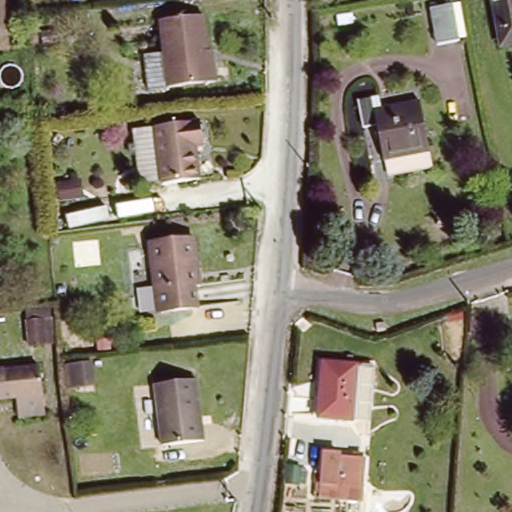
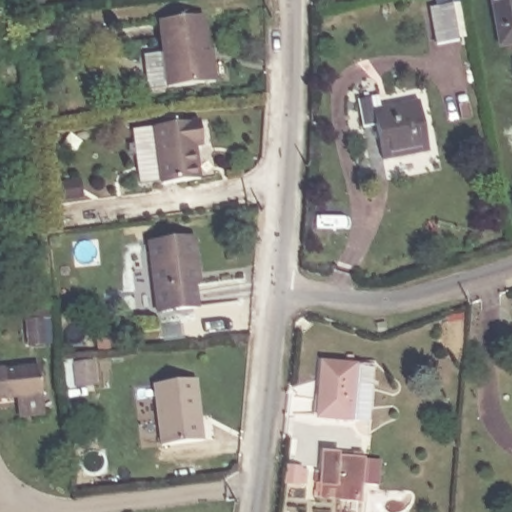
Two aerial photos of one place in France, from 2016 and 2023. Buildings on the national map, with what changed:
unchanged [(502,43),(495,0),(512,0),(512,41),(502,43)]
unchanged [(450,3),(457,38),(436,42),(429,7),(450,3)]
unchanged [(146,58),(166,55),(162,21),(207,16),(212,62),(216,61),(218,83),(170,89),(150,91),(146,58)]
unchanged [(382,126),(369,128),(364,100),(378,97),(380,109),(425,101),(432,142),(433,152),(387,160),(385,150),(382,126)]
unchanged [(214,143),(206,144),(210,176),(173,181),(173,178),(152,181),(147,152),(140,153),(138,142),(146,141),(145,128),(165,125),(210,118),(214,143)]
unchanged [(73,182),(76,199),(59,202),(56,185),(73,182)]
unchanged [(162,315),(154,245),(198,240),(201,269),(203,284),(198,285),(200,310),(162,315)]
unchanged [(43,316),(47,340),(35,341),(32,317),(43,316)]
unchanged [(322,418),(327,362),(373,366),(368,420),(350,419),(350,420),(322,418)]
unchanged [(19,398),(0,400),(0,372),(42,368),(45,396),(42,396),(44,417),(20,419),(19,398)]
unchanged [(199,381),(207,440),(168,446),(159,387),(199,381)]
unchanged [(345,483),(343,502),(323,500),(327,457),(368,460),(367,485),(345,483)]

